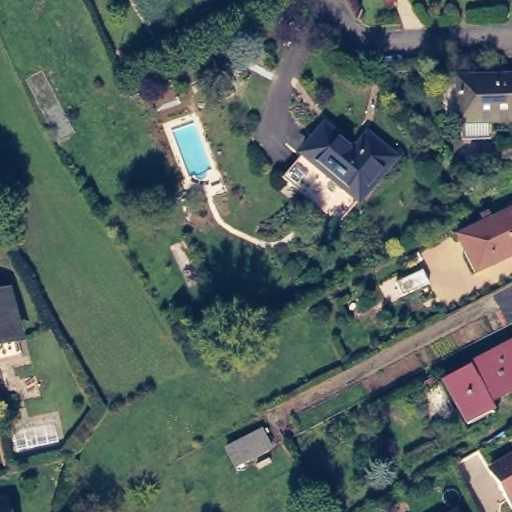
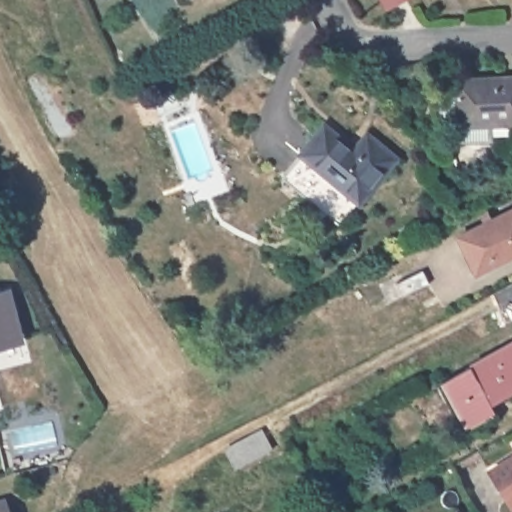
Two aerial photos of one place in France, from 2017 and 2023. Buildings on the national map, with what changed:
unchanged [(487,113),(487,128),(458,129),(457,114),(456,114),(454,68),(508,66),(512,66),(512,111),(487,113)]
unchanged [(300,160),(341,110),(371,135),(385,119),(411,141),(356,207),(300,160)]
unchanged [(482,217),(479,210),(493,204),(497,210),(512,201),(512,246),(475,265),(456,231),(482,217)]
unchanged [(14,329),(15,330),(0,334),(0,287),(3,287),(14,329)]
unchanged [(512,334),(512,376),(491,387),(499,403),(467,419),(442,370),(512,334)]
unchanged [(217,430),(252,413),(262,431),(227,448),(217,430)]
unchanged [(19,436),(61,426),(67,451),(24,460),(19,436)]
unchanged [(230,454),(274,431),(282,446),(237,469),(230,454)]
unchanged [(511,502),(487,465),(512,449),(512,501),(511,502)]
unchanged [(6,512),(0,512),(0,498),(2,498),(6,512)]

